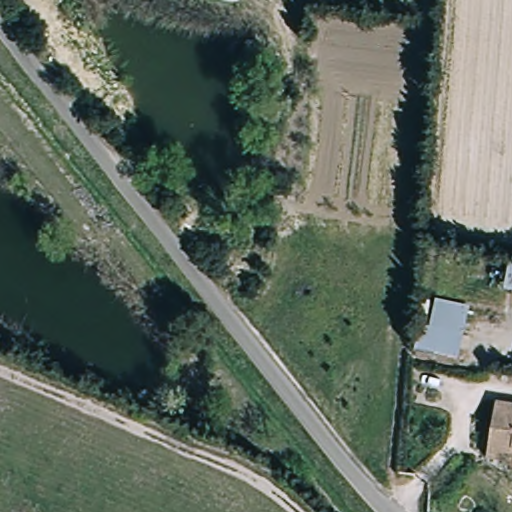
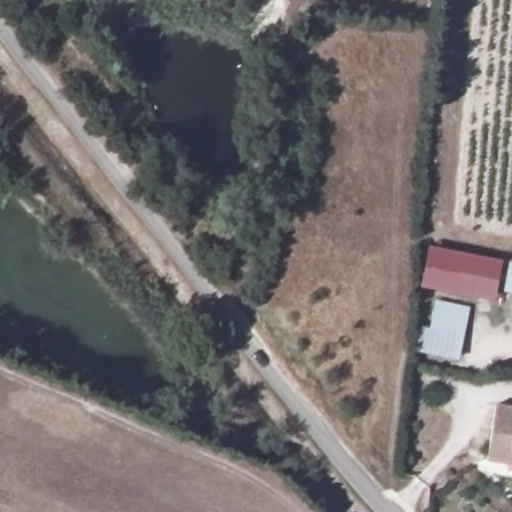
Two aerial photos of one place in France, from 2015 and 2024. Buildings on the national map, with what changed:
new [(429,246),(502,260),(493,301),(421,286),(429,246)]
unchanged [(504,265),(512,267),(512,303),(498,301),(504,265)]
unchanged [(433,322),(437,294),(469,303),(462,353),(414,342),(417,320),(433,322)]
unchanged [(486,465),(495,411),(512,415),(512,458),(509,468),(486,465)]

